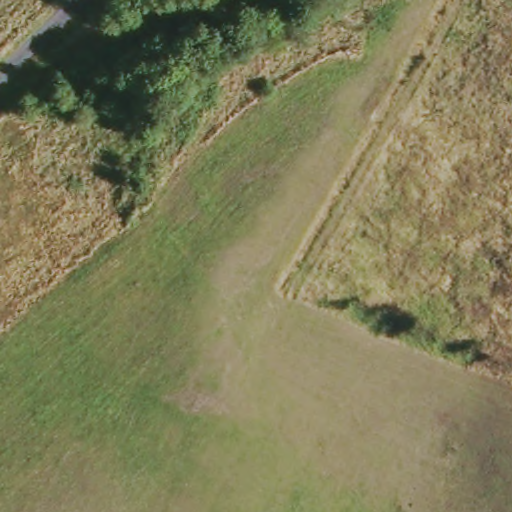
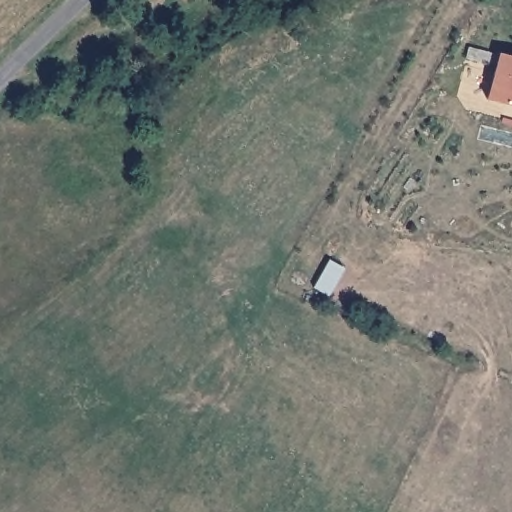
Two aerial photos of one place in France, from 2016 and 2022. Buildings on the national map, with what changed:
new [(498,53),(512,56),(512,105),(487,98),(498,53)]

